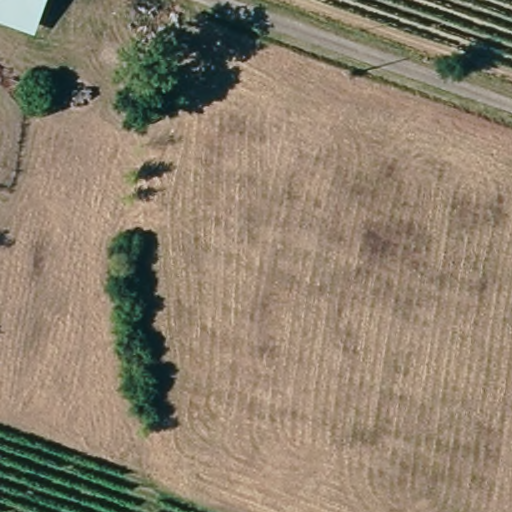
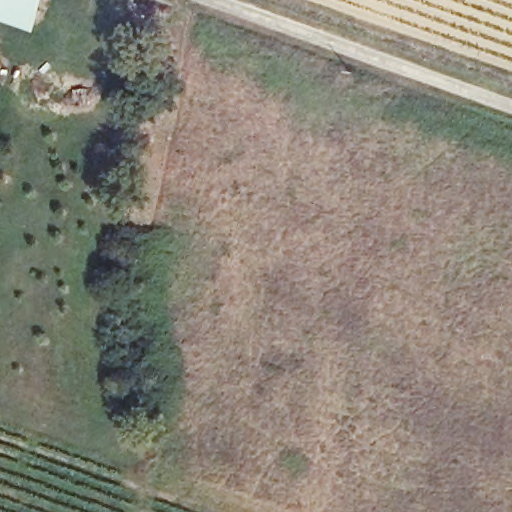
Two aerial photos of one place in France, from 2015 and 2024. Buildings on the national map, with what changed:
unchanged [(35,35),(0,23),(0,0),(46,0),(35,35)]

